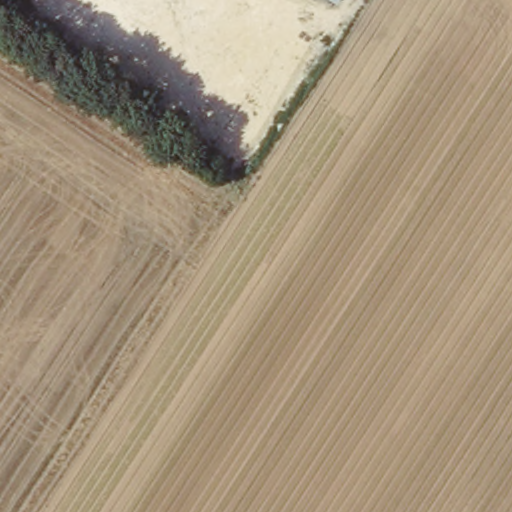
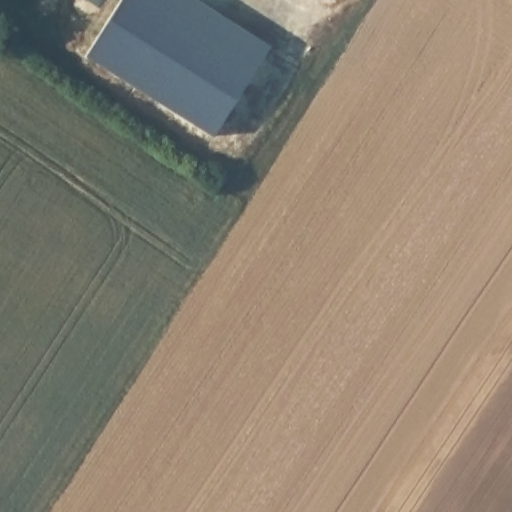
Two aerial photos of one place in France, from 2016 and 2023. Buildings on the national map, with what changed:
new [(204,0),(268,41),(207,130),(84,48),(116,0),(204,0)]
demolished [(310,0),(340,0),(333,12),(310,0)]

